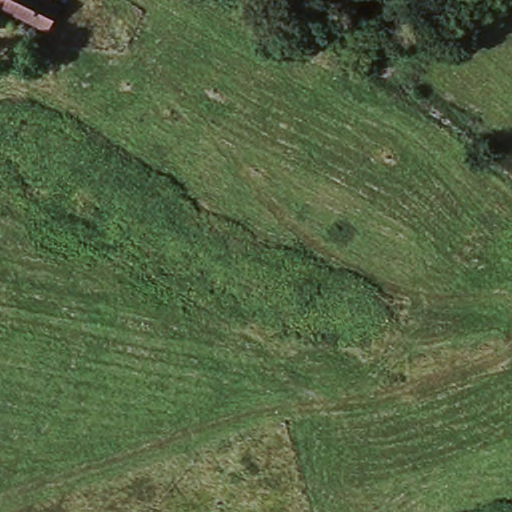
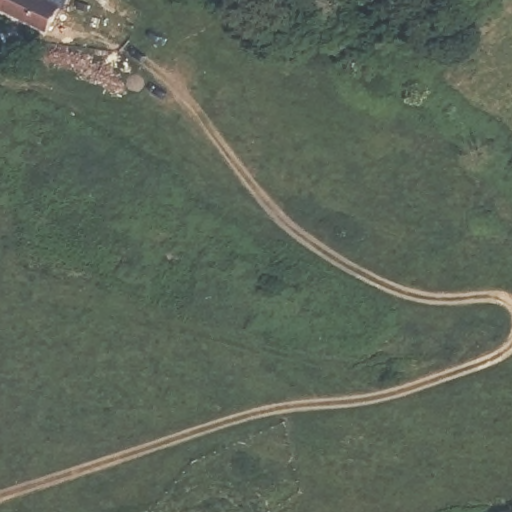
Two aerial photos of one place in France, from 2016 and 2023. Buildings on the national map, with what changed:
unchanged [(0,12),(0,0),(50,0),(46,8),(56,12),(43,35),(0,12)]

